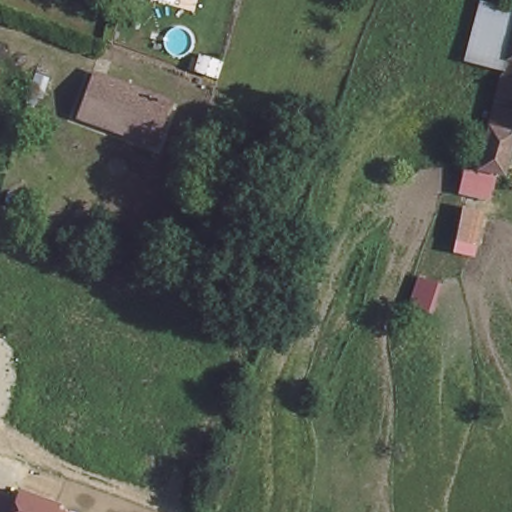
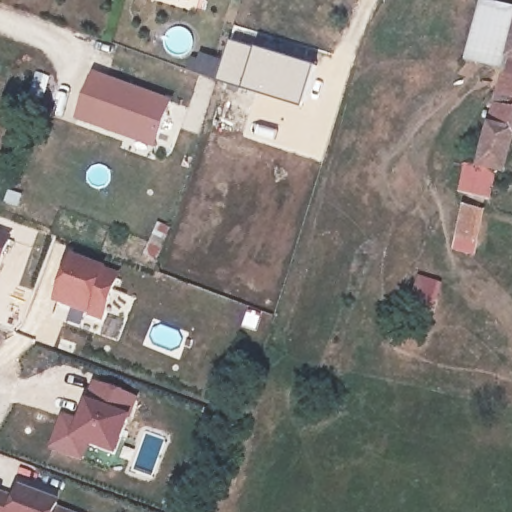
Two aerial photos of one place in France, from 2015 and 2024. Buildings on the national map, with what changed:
unchanged [(473,53),(492,0),(495,0),(512,5),(512,67),(473,53)]
new [(191,56),(194,57),(196,50),(223,59),(230,39),(318,65),(305,109),(245,89),(186,67),(191,56)]
unchanged [(512,67),(512,144),(507,162),(486,154),(510,75),(512,67)]
unchanged [(126,132),(81,114),(98,75),(173,104),(161,135),(158,145),(126,132)]
unchanged [(2,267),(0,267),(0,223),(15,228),(2,267)]
new [(118,272),(103,315),(53,296),(69,256),(118,272)]
new [(63,414),(80,418),(93,381),(137,395),(115,458),(87,450),(81,463),(49,452),(63,414)]
unchanged [(18,488),(61,504),(59,510),(65,512),(0,512),(0,490),(15,496),(18,488)]

